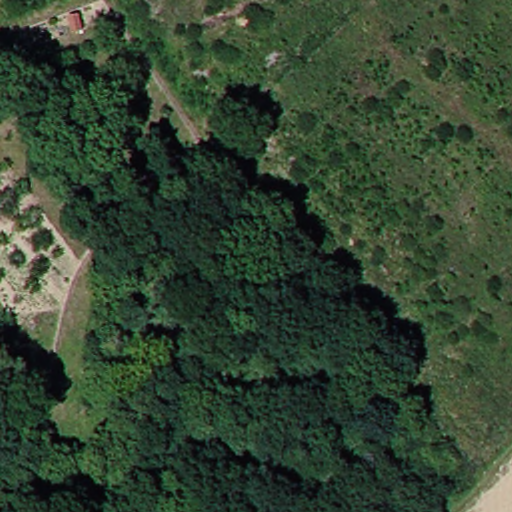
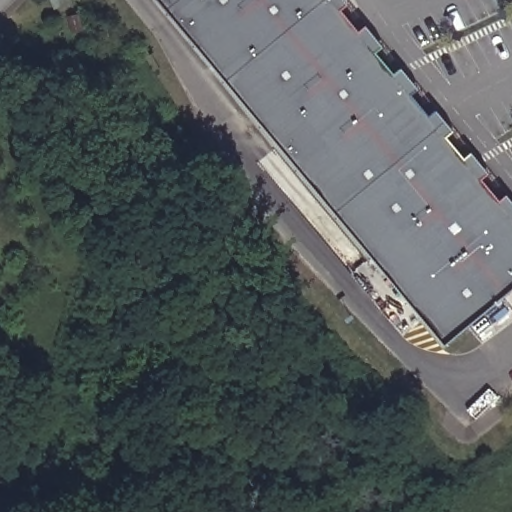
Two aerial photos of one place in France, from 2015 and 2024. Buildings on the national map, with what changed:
new [(383,46),(377,52),(395,75),(402,70),(419,88),(413,94),(432,117),(437,112),(454,130),(447,137),(466,159),(472,154),(489,172),(482,180),(502,202),(509,196),(512,201),(512,289),(445,345),(160,0),(345,0),(383,46)]
unchanged [(35,442),(24,452),(17,444),(29,434),(35,442)]

